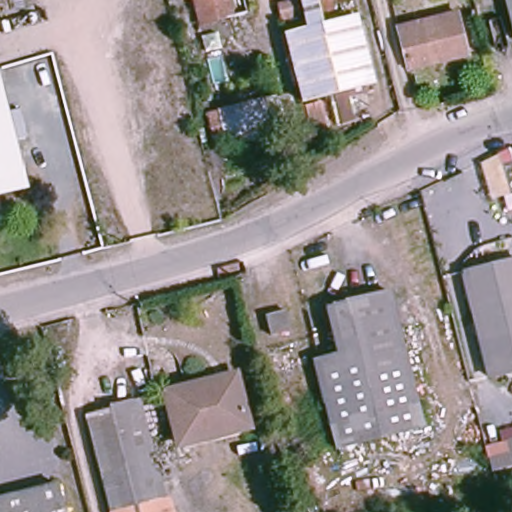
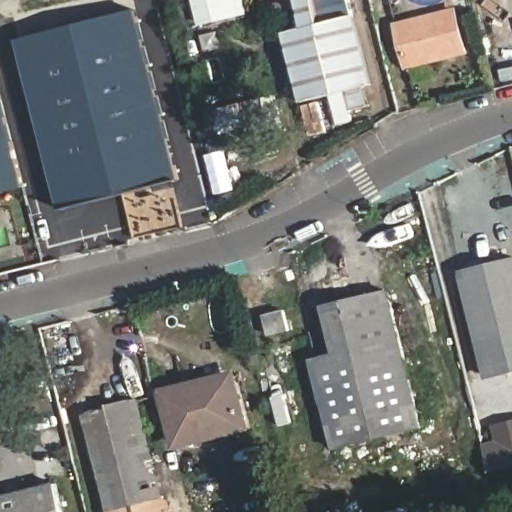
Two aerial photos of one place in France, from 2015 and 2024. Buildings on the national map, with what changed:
unchanged [(200,31),(194,2),(183,4),(182,0),(231,0),(236,20),(200,31)]
unchanged [(301,29),(295,0),(313,0),(319,24),(354,14),(372,85),(298,106),(280,35),(301,29)]
new [(140,10),(183,182),(61,209),(20,39),(140,10)]
unchanged [(453,16),(463,55),(430,61),(404,65),(394,30),(453,16)]
unchanged [(25,190),(0,196),(0,103),(25,190)]
unchanged [(264,104),(272,131),(221,143),(214,116),(264,104)]
unchanged [(459,274),(512,260),(512,374),(486,381),(459,274)]
unchanged [(391,295),(421,432),(331,453),(311,363),(336,357),(325,311),(391,295)]
unchanged [(286,324),(290,343),(269,348),(265,328),(286,324)]
unchanged [(208,385),(234,379),(237,394),(245,428),(178,446),(165,395),(208,385)]
unchanged [(133,403),(158,512),(103,512),(81,416),(133,403)]
unchanged [(512,442),(512,469),(491,474),(485,449),(512,442)]
unchanged [(59,485),(65,512),(0,512),(0,499),(59,485)]

